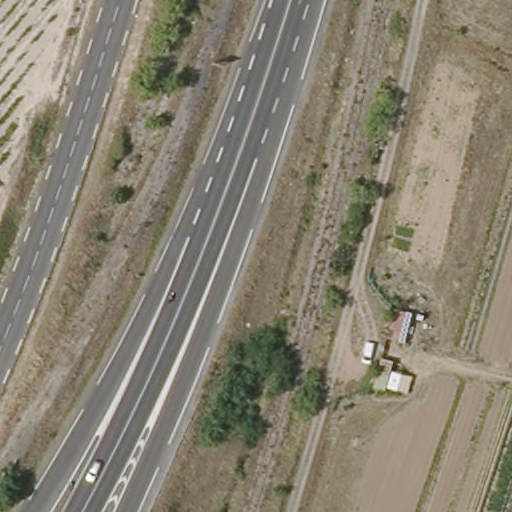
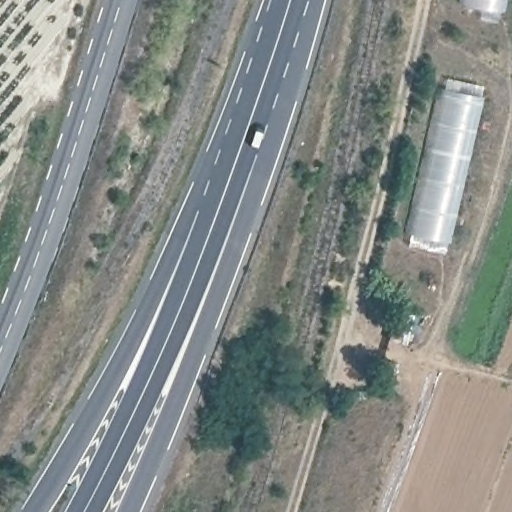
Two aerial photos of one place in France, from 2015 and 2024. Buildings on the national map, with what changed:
new [(463,4),(463,0),(507,0),(506,11),(463,4)]
new [(410,232),(444,87),(480,96),(447,241),(410,232)]

